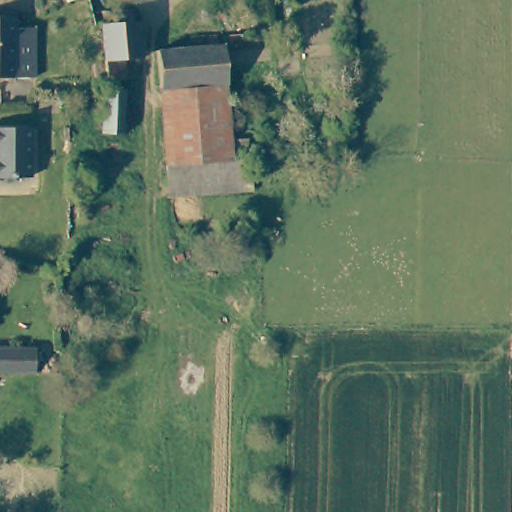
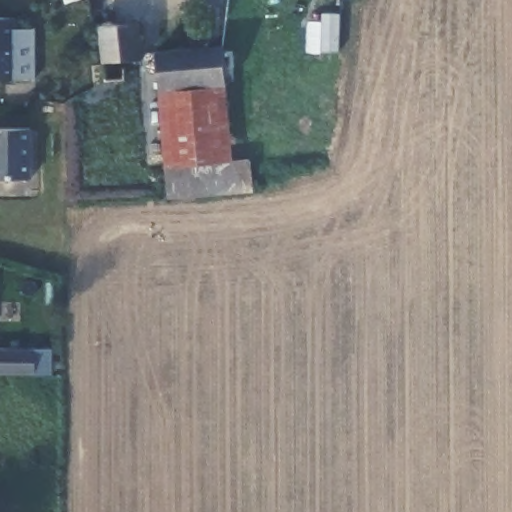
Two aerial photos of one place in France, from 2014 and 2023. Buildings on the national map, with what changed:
unchanged [(96,8),(133,5),(137,40),(129,40),(131,61),(100,66),(96,8)]
unchanged [(0,75),(0,13),(5,13),(6,24),(14,74),(0,75)]
unchanged [(29,21),(35,71),(14,74),(6,24),(29,21)]
unchanged [(163,90),(161,49),(230,45),(233,86),(163,90)]
unchanged [(134,114),(114,115),(111,74),(130,71),(134,114)]
unchanged [(220,164),(167,167),(163,90),(233,86),(245,162),(220,164)]
unchanged [(0,179),(0,126),(29,125),(29,179),(0,179)]
unchanged [(220,164),(245,162),(251,192),(167,200),(167,167),(220,164)]
unchanged [(0,376),(0,350),(30,351),(31,375),(2,376),(0,376)]

